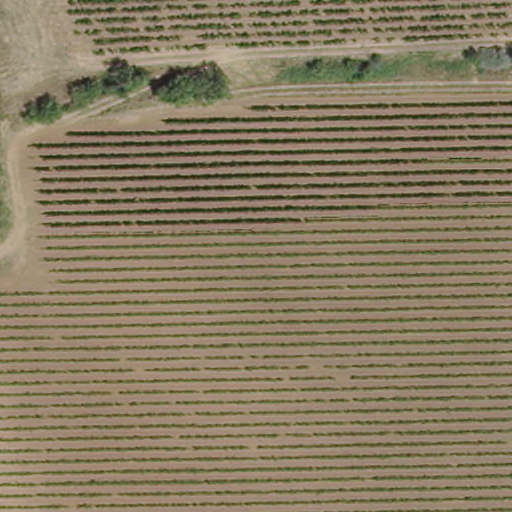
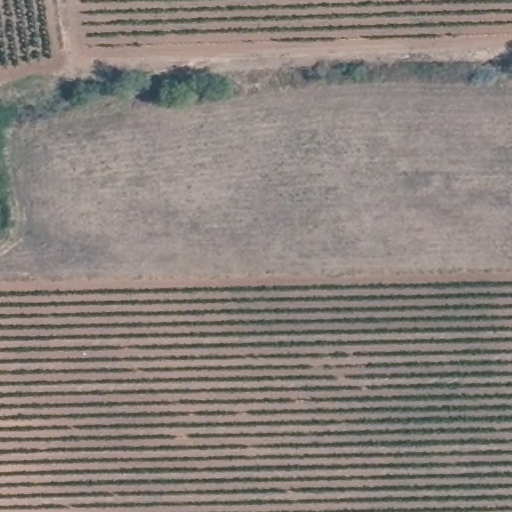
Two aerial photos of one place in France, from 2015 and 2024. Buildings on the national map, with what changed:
[]

